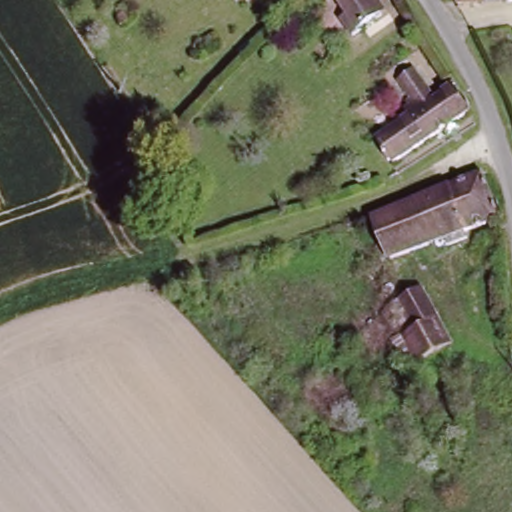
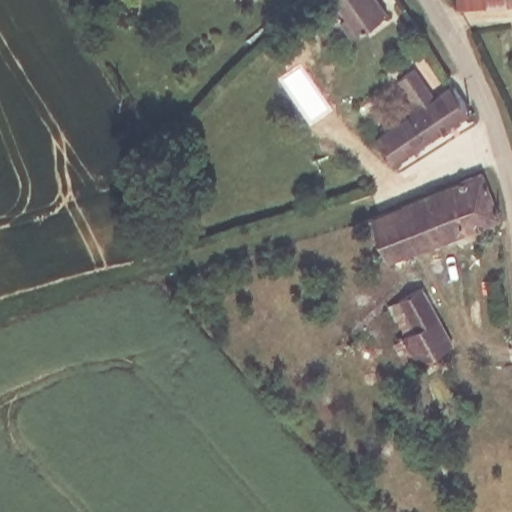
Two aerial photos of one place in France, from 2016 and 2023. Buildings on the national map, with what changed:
unchanged [(354,35),(344,19),(349,16),(336,0),(385,0),(392,10),(384,15),(354,35)]
unchanged [(456,7),(456,0),(506,0),(506,4),(456,7)]
unchanged [(506,0),(512,0),(512,3),(506,4),(506,0)]
unchanged [(417,67),(438,95),(452,85),(469,114),(394,166),(374,139),(403,119),(398,112),(413,101),(399,80),(417,67)]
unchanged [(488,170),(503,216),(388,260),(386,254),(381,256),(376,240),(368,242),(356,219),(488,170)]
unchanged [(429,286),(449,344),(414,356),(398,311),(393,299),(429,286)]

